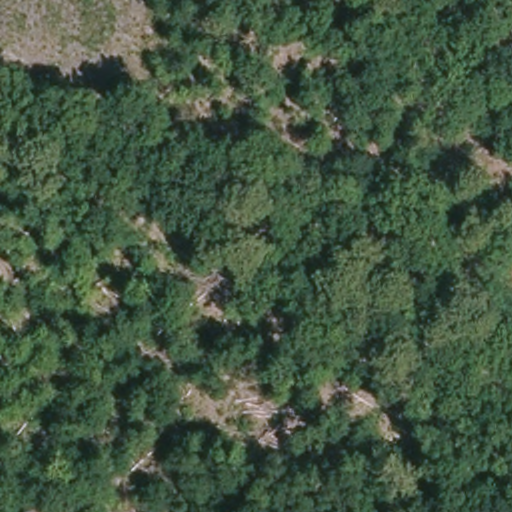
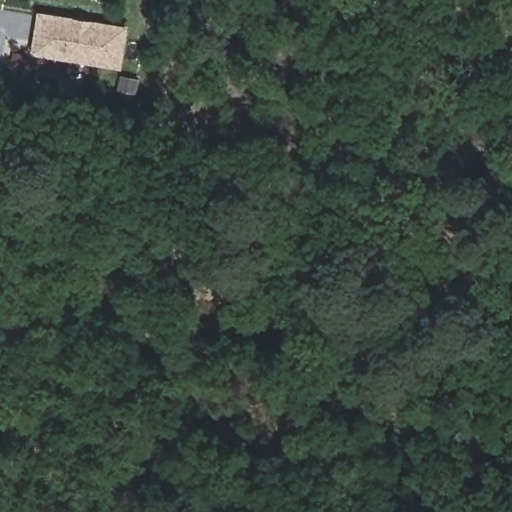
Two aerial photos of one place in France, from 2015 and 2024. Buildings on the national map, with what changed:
new [(125,23),(120,65),(28,53),(35,9),(125,23)]

